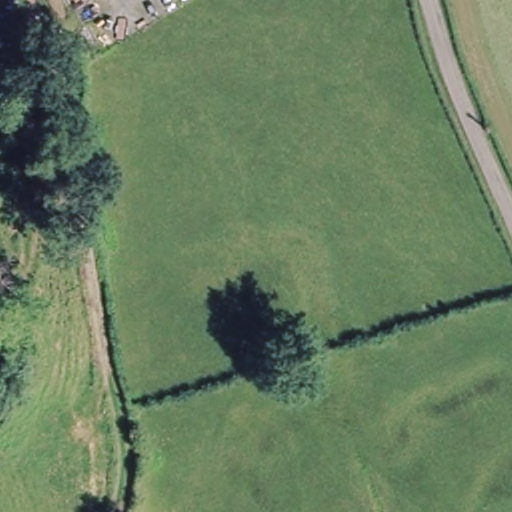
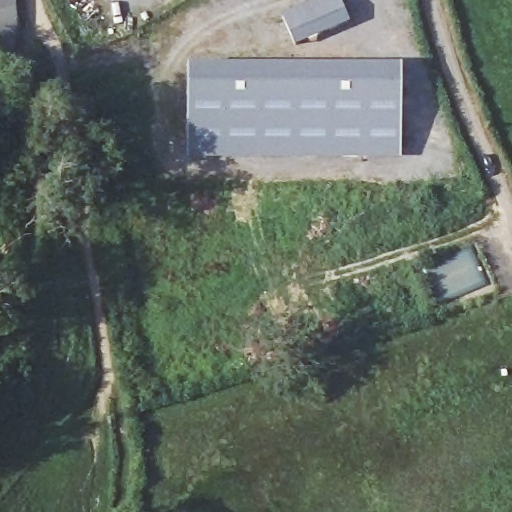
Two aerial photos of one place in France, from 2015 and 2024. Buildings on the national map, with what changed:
demolished [(5,1),(6,15),(0,16),(0,0),(14,0),(5,1)]
new [(2,14),(1,29),(0,40),(0,0),(2,0),(2,14)]
new [(318,0),(340,0),(350,21),(298,45),(285,16),(318,0)]
new [(399,101),(401,151),(187,157),(186,76),(363,71),(364,101),(399,101)]
new [(399,101),(364,101),(363,71),(399,71),(399,101)]
new [(45,167),(42,140),(47,139),(63,138),(67,165),(47,166),(45,167)]

